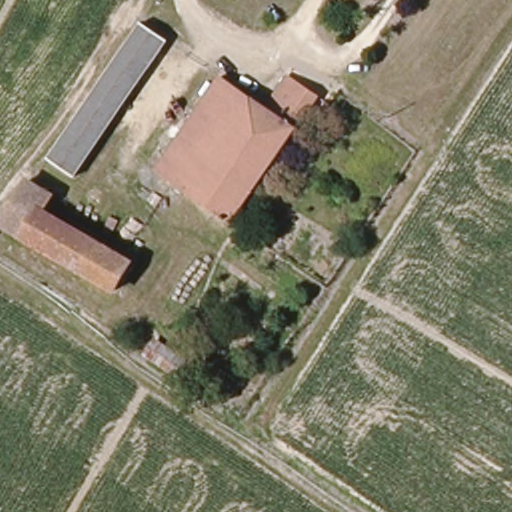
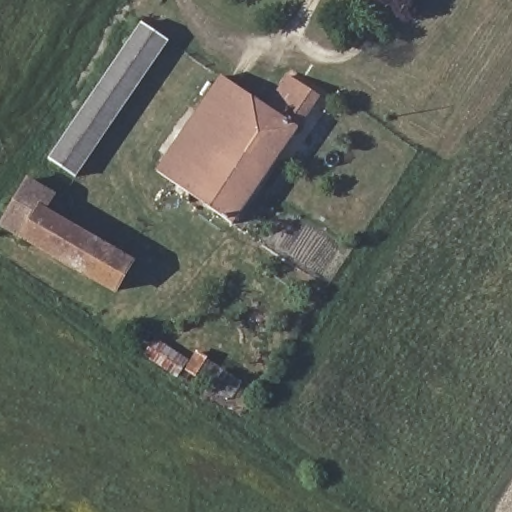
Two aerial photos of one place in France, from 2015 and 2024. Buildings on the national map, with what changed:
unchanged [(51,166),(142,25),(169,41),(79,184),(51,166)]
unchanged [(161,173),(225,77),(270,103),(294,75),(323,93),(236,225),(161,173)]
unchanged [(4,227),(29,182),(49,195),(39,212),(128,269),(114,295),(4,227)]
unchanged [(158,343),(192,362),(197,353),(207,358),(192,384),(146,359),(158,343)]

